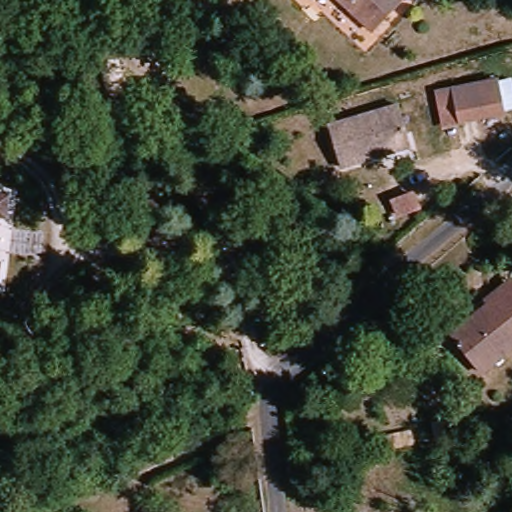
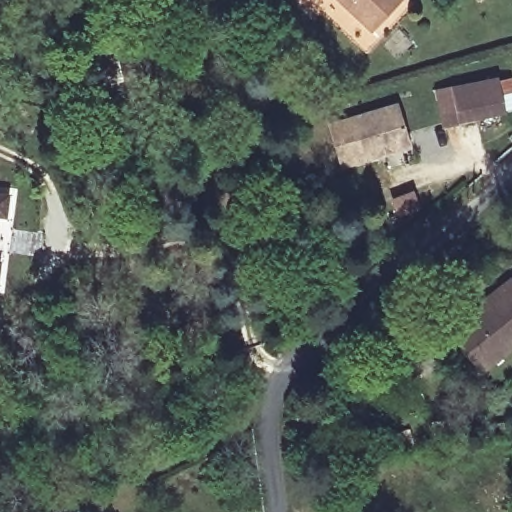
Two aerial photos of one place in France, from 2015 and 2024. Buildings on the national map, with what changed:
unchanged [(381,27),(352,0),(406,0),(381,27)]
unchanged [(497,112),(450,120),(445,88),(491,80),(497,112)]
unchanged [(396,108),(408,150),(338,170),(326,128),(396,108)]
unchanged [(18,214),(1,212),(0,220),(0,191),(20,193),(18,214)]
unchanged [(424,212),(405,219),(400,204),(419,197),(424,212)]
unchanged [(10,281),(0,279),(0,258),(12,259),(10,281)]
unchanged [(494,374),(462,335),(498,306),(494,300),(512,285),(512,359),(494,374)]
unchanged [(414,365),(402,350),(419,336),(431,351),(414,365)]
unchanged [(410,451),(379,456),(376,438),(409,431),(410,451)]

